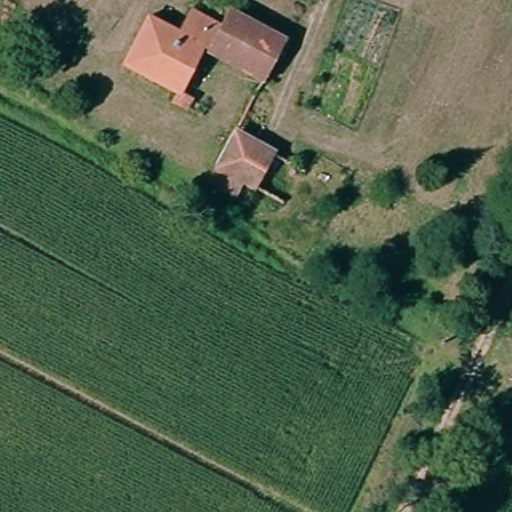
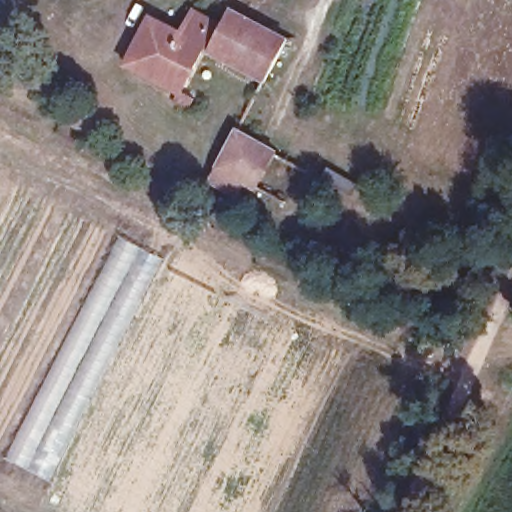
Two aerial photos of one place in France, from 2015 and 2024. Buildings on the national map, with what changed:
new [(332,110),(372,0),(421,0),(377,124),(332,110)]
unchanged [(121,62),(145,16),(169,29),(180,10),(207,24),(214,12),(282,49),(270,76),(200,40),(176,87),(189,94),(183,106),(170,99),(174,90),(121,62)]
unchanged [(247,197),(209,180),(228,138),(237,142),(243,128),(271,141),(247,197)]
new [(165,260),(52,483),(6,461),(118,236),(165,260)]

